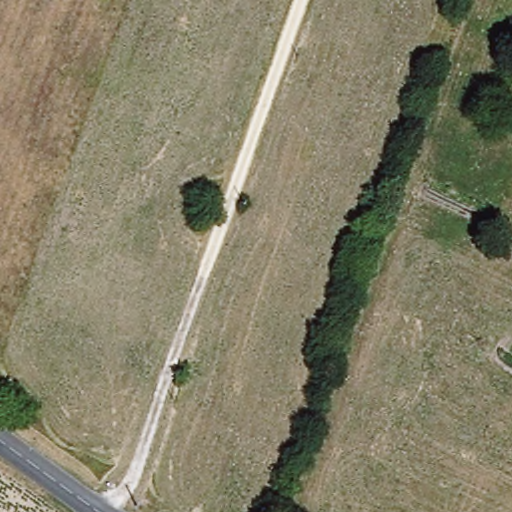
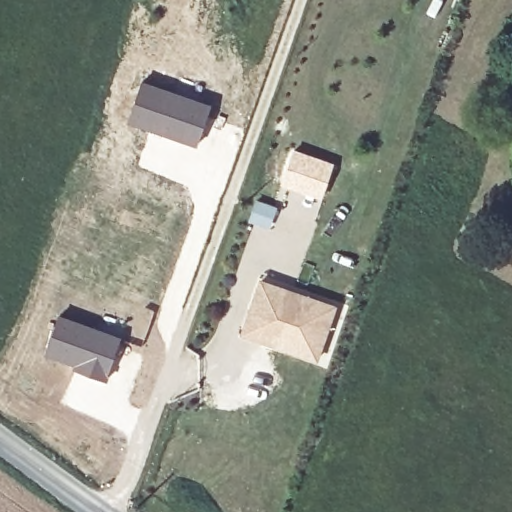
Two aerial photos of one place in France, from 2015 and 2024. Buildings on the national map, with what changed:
new [(142,80),(212,103),(196,146),(127,123),(142,80)]
new [(291,146),(335,163),(321,200),(277,184),(291,146)]
new [(255,198),(277,206),(268,228),(246,220),(255,198)]
new [(257,284),(332,308),(316,361),(257,343),(240,338),(249,311),(257,284)]
new [(57,314),(121,335),(106,380),(43,355),(57,314)]

